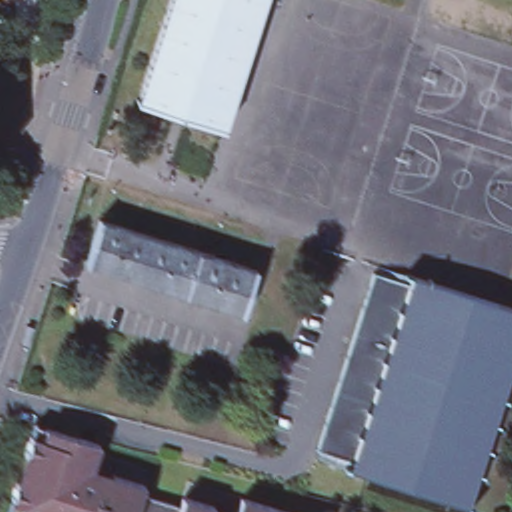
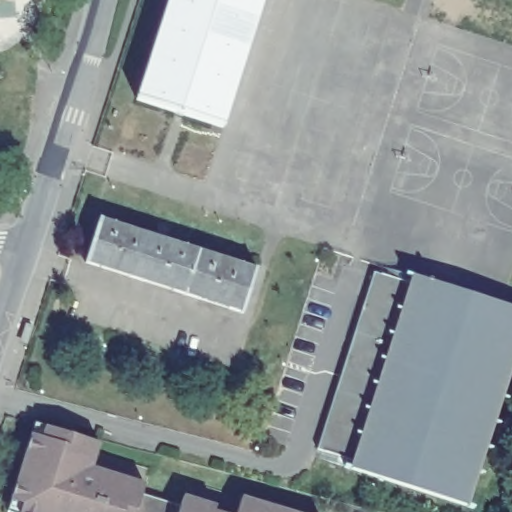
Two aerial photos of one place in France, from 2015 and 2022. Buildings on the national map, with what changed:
unchanged [(263,0),(221,130),(138,102),(170,0),(263,0)]
unchanged [(100,218),(258,268),(242,312),(86,262),(100,218)]
unchanged [(512,305),(512,368),(465,502),(349,462),(353,455),(317,442),(378,267),(413,280),(414,276),(416,272),(512,305)]
unchanged [(6,512),(16,478),(22,480),(28,456),(23,453),(33,422),(100,442),(90,475),(113,482),(113,477),(144,486),(142,495),(181,506),(183,497),(214,507),(213,512),(215,512),(8,512),(6,512)]
unchanged [(241,496),(294,512),(236,512),(241,496)]

